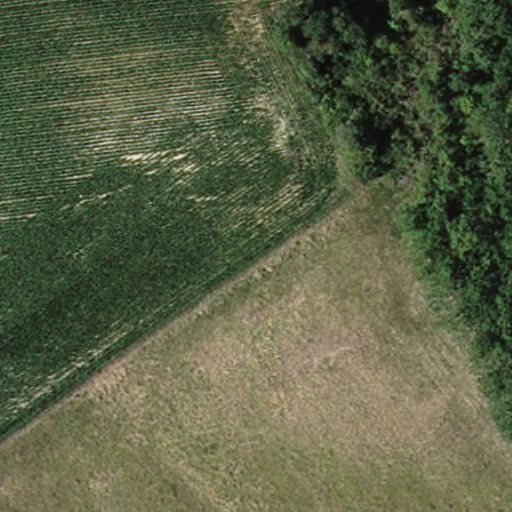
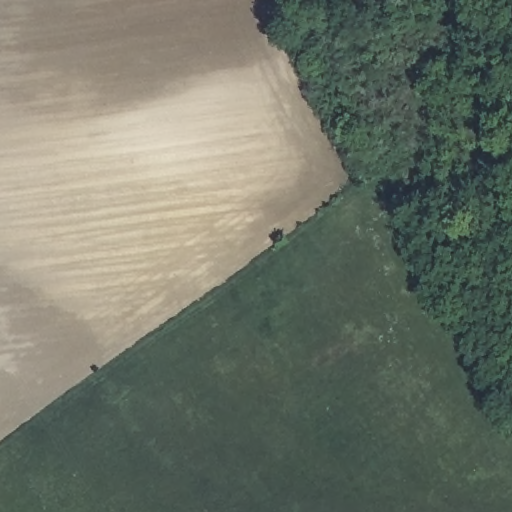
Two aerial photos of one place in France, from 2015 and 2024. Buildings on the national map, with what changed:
[]

